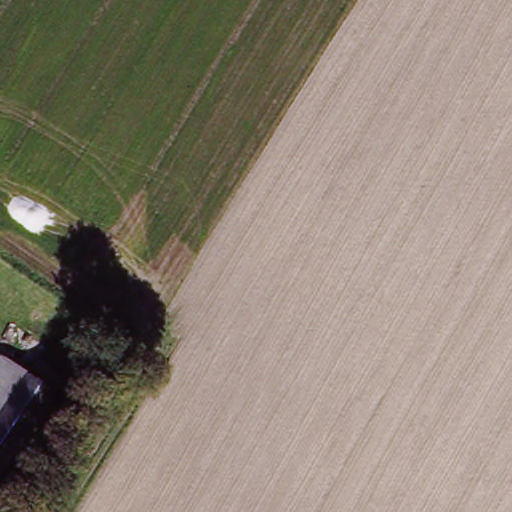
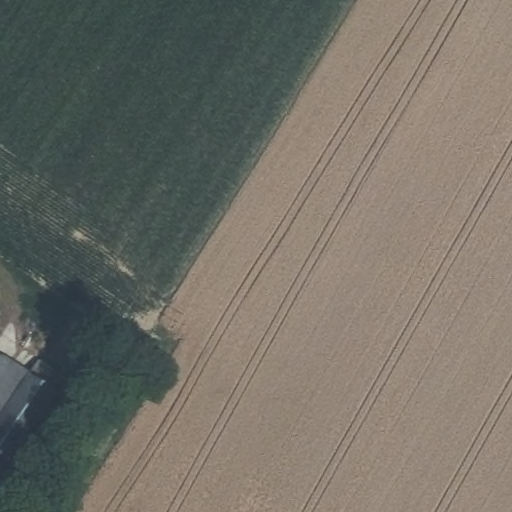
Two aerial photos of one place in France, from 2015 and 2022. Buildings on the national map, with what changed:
unchanged [(4,349),(33,369),(0,418),(0,355),(4,349)]
unchanged [(33,369),(61,388),(33,429),(41,434),(32,446),(42,453),(23,476),(9,464),(0,477),(0,418),(33,369)]

